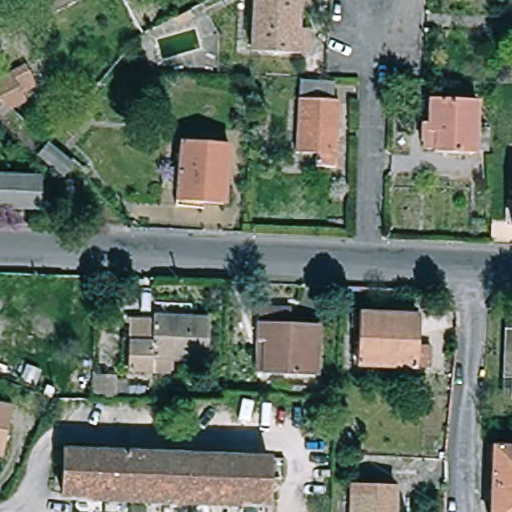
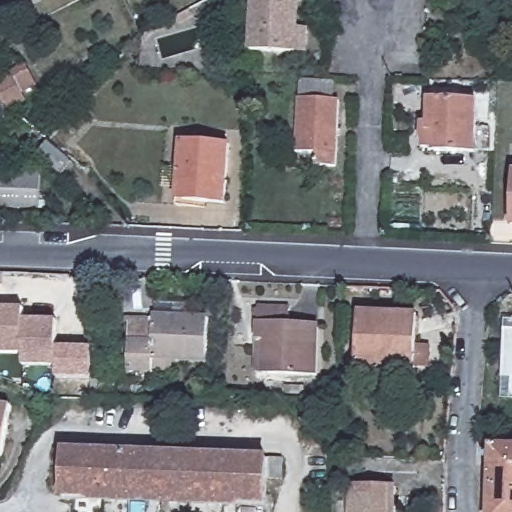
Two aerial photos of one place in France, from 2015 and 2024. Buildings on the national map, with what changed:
unchanged [(304,3),(301,58),(256,55),(259,0),(262,0),(302,0),(302,3),(304,3)]
unchanged [(35,86),(22,94),(25,100),(10,109),(0,101),(0,77),(22,64),(35,86)]
unchanged [(336,168),(315,166),(316,154),(296,153),(301,81),(336,84),(335,99),(340,99),(338,129),(337,153),(336,168)]
unchanged [(492,151),(480,151),(429,153),(429,143),(427,143),(427,124),(434,124),(434,100),(481,101),(481,131),(493,131),(492,151)]
unchanged [(88,117),(72,135),(62,127),(63,125),(78,109),(88,117)]
unchanged [(226,203),(179,199),(183,140),(231,144),(226,203)]
unchanged [(66,177),(43,158),(52,148),(75,166),(66,177)]
unchanged [(44,178),(42,210),(0,208),(0,175),(44,178)]
unchanged [(512,211),(512,226),(511,226),(512,211)]
unchanged [(257,339),(258,304),(290,305),(289,320),(318,322),(316,372),(262,371),(256,370),(257,339)]
new [(118,398),(93,396),(93,389),(93,378),(56,378),(57,367),(23,366),(23,353),(0,353),(0,307),(25,308),(25,319),(58,321),(58,349),(93,349),(93,372),(101,372),(118,373),(118,386),(118,398)]
unchanged [(426,365),(412,364),(353,363),(356,309),(415,313),(413,343),(427,344),(426,365)]
unchanged [(152,369),(130,368),(131,340),(133,314),(155,315),(209,318),(207,358),(153,355),(152,369)]
unchanged [(509,329),(512,329),(512,376),(506,376),(509,329)]
unchanged [(285,384),(304,385),(303,393),(303,398),(284,397),(284,393),(285,384)]
unchanged [(11,407),(4,457),(0,456),(0,405),(11,407)]
unchanged [(512,446),(512,512),(489,512),(492,445),(512,446)]
unchanged [(275,458),(274,477),(266,477),(265,503),(60,494),(61,465),(54,464),(55,448),(62,449),(275,458)]
unchanged [(354,484),(396,485),(395,512),(353,512),(354,484)]

